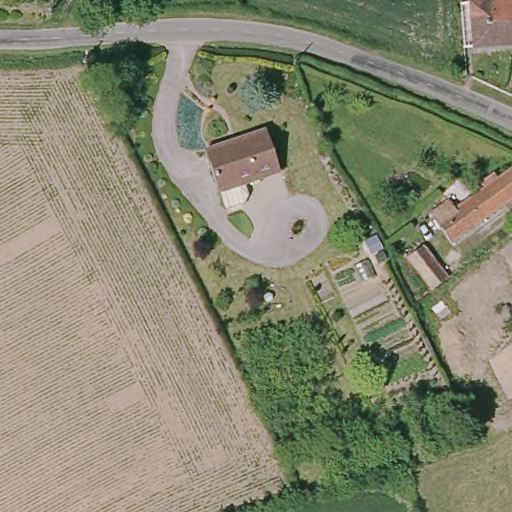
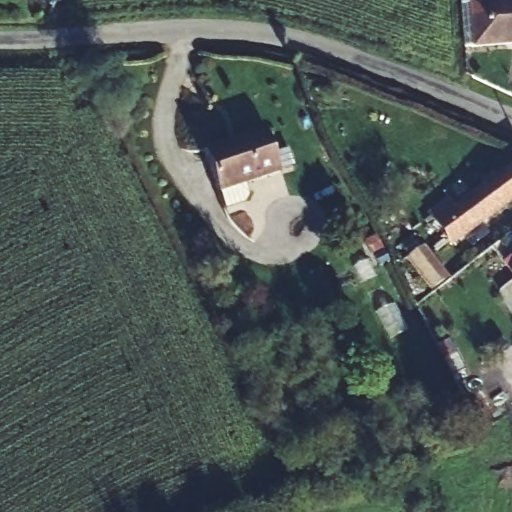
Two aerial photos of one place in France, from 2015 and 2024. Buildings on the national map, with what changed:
unchanged [(470,1),(512,1),(512,44),(472,45),(470,1)]
unchanged [(271,136),(280,177),(247,184),(250,196),(242,207),(221,212),(207,148),(271,136)]
unchanged [(447,213),(443,208),(456,199),(460,205),(512,168),(512,197),(443,243),(430,225),(447,213)]
unchanged [(407,262),(426,249),(447,278),(430,292),(407,262)]

